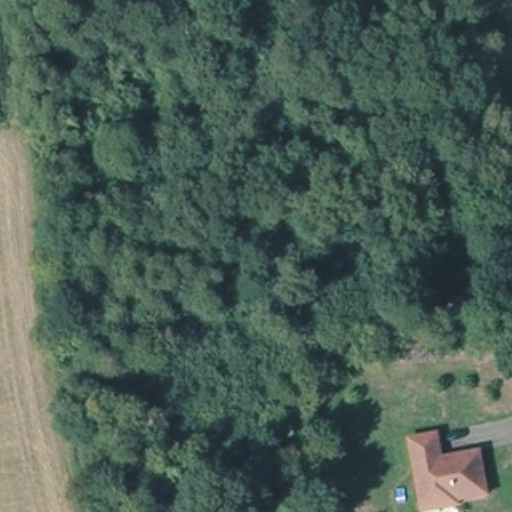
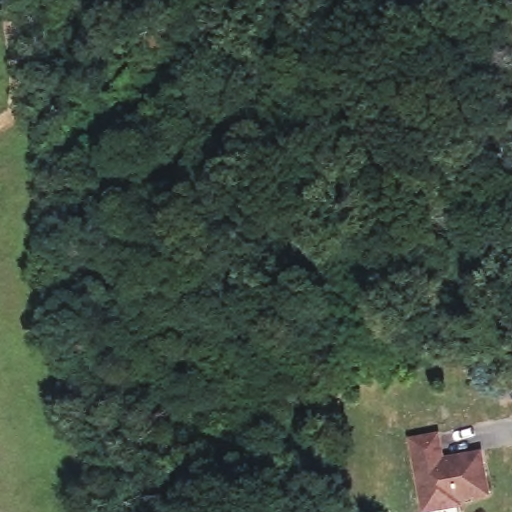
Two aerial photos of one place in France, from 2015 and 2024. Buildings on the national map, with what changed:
unchanged [(406,442),(438,436),(443,460),(481,455),(491,501),(460,507),(461,511),(456,512),(418,512),(406,442)]

